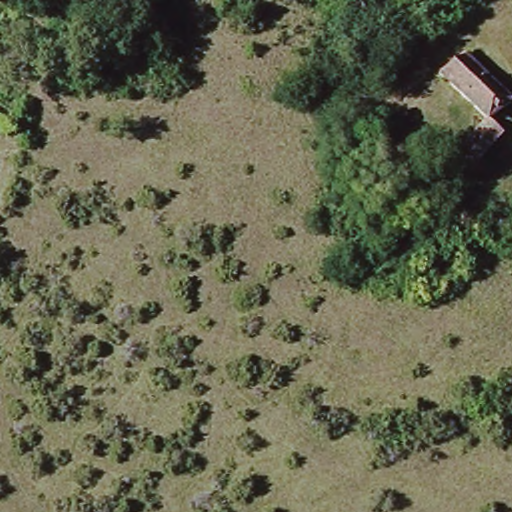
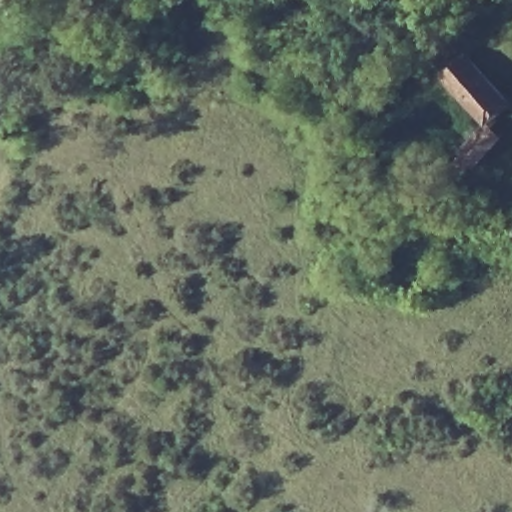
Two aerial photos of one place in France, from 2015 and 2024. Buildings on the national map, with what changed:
unchanged [(427,54),(455,34),(498,89),(474,106),(427,54)]
unchanged [(490,123),(465,149),(450,134),(474,108),(490,123)]

